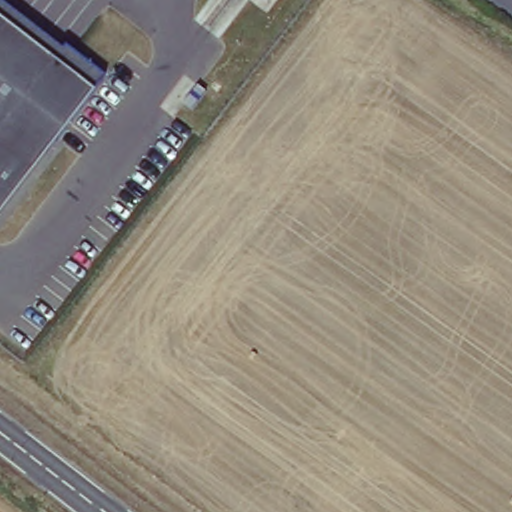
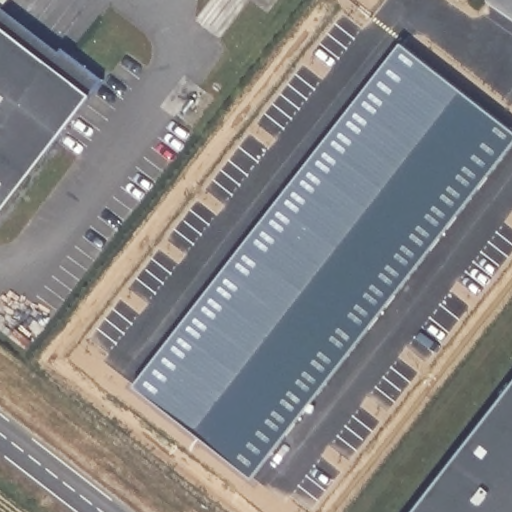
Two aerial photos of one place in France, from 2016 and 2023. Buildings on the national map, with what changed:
unchanged [(3,220),(0,218),(0,5),(107,85),(3,220)]
new [(512,120),(512,147),(268,482),(135,381),(401,36),(512,120)]
new [(412,512),(512,382),(512,512),(412,512)]

